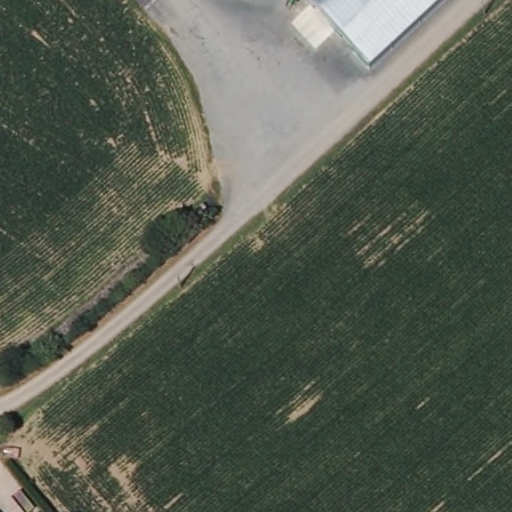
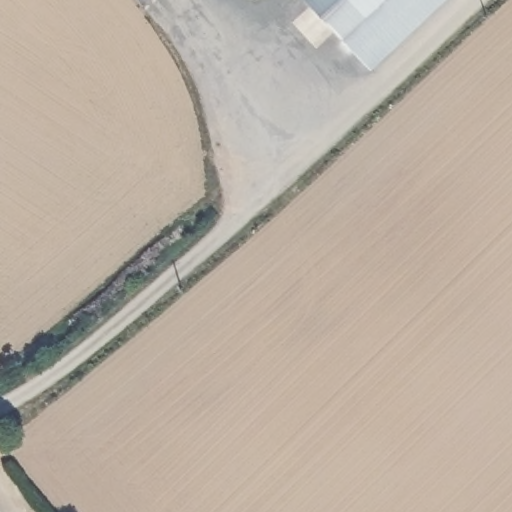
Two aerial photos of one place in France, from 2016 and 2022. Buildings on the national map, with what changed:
unchanged [(303,0),(447,0),(370,72),(345,43),(303,0)]

